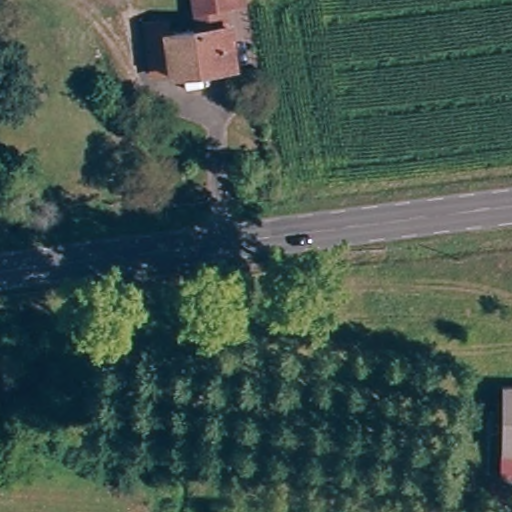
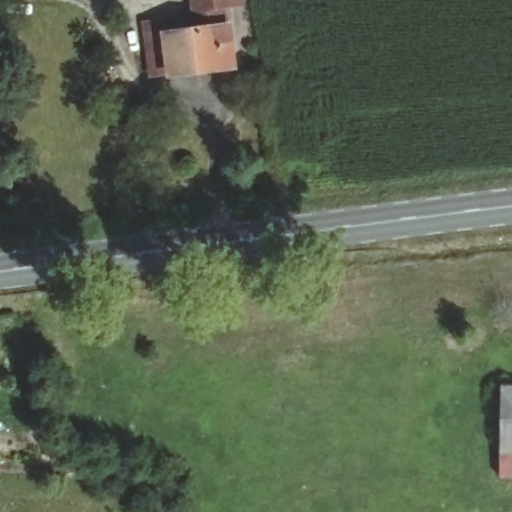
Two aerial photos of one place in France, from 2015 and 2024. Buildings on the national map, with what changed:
unchanged [(168,81),(160,42),(195,37),(190,0),(243,0),(245,8),(223,10),(229,50),(232,71),(226,72),(168,81)]
unchanged [(512,454),(500,455),(498,388),(512,388),(512,454)]
unchanged [(512,478),(501,478),(500,455),(512,454),(512,478)]

